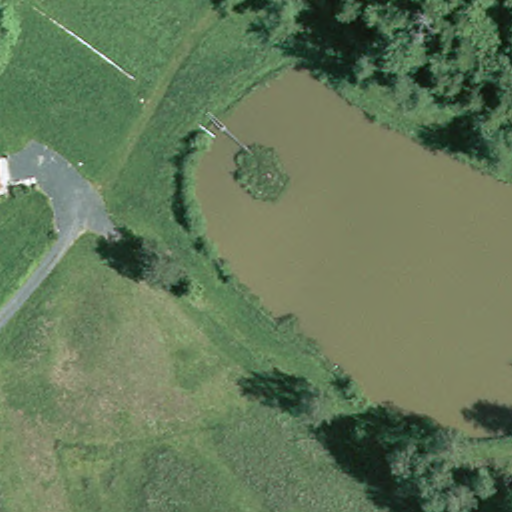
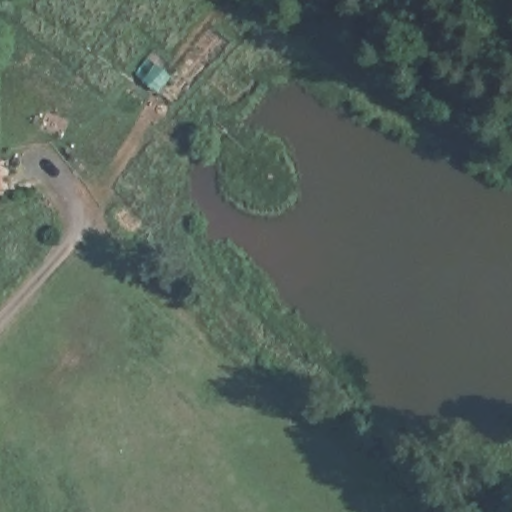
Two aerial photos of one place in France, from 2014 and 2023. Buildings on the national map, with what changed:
unchanged [(3,187),(0,187),(0,155),(3,187)]

